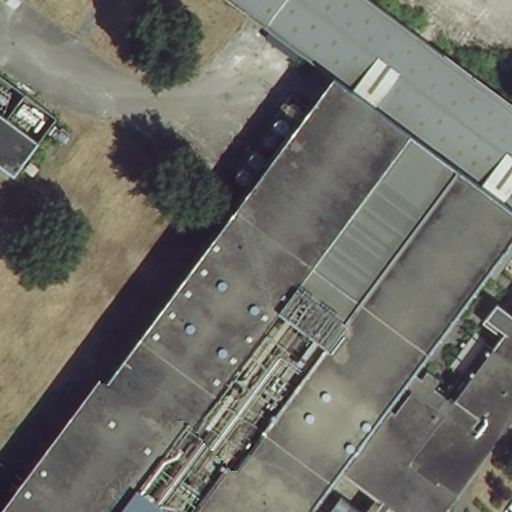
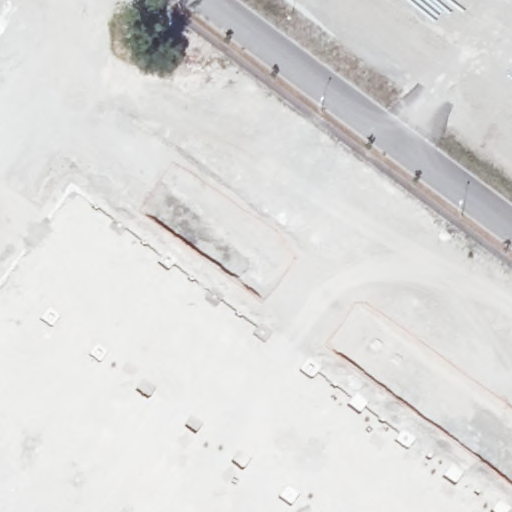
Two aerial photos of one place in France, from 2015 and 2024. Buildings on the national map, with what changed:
demolished [(218,0),(369,0),(512,105),(512,258),(427,374),(415,391),(326,512),(16,512),(326,80),(218,0)]
demolished [(20,2),(17,0),(22,0),(20,2)]
demolished [(0,163),(0,114),(37,141),(15,174),(0,163)]
demolished [(367,477),(425,398),(436,382),(443,372),(455,381),(449,391),(460,398),(508,333),(491,321),(501,307),(512,315),(512,421),(445,512),(416,512),(406,506),(400,501),(367,477)]
demolished [(359,512),(347,512),(351,507),(359,512)]

